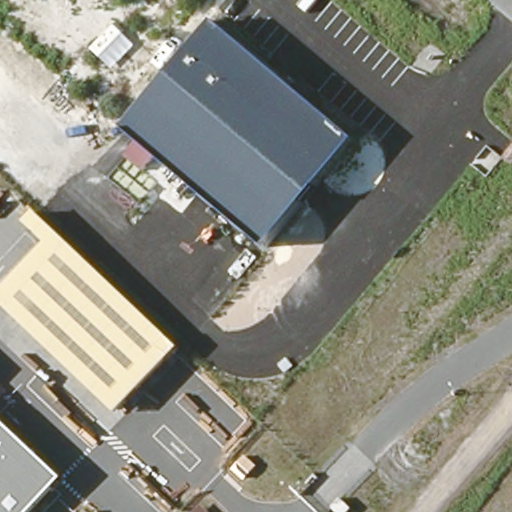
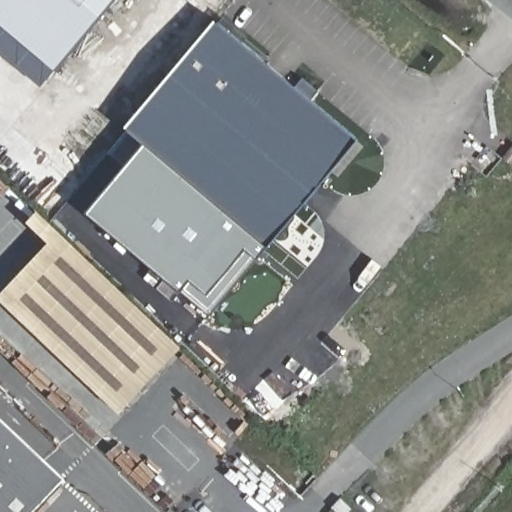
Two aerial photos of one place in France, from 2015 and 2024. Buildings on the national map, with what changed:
new [(0,26),(0,0),(114,0),(55,72),(0,26)]
unchanged [(357,138),(267,245),(127,129),(218,21),(357,138)]
unchanged [(508,132),(512,128),(512,135),(508,132)]
new [(145,143),(267,245),(257,258),(209,315),(180,290),(87,212),(145,143)]
unchanged [(0,299),(0,292),(47,243),(26,222),(37,210),(182,346),(121,414),(0,299)]
unchanged [(0,512),(0,416),(66,477),(33,512),(0,512)]

